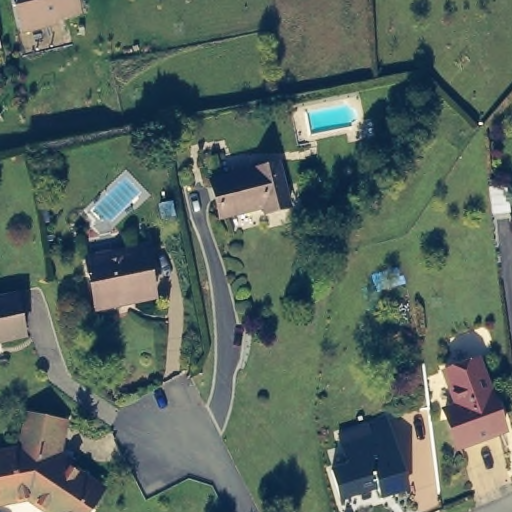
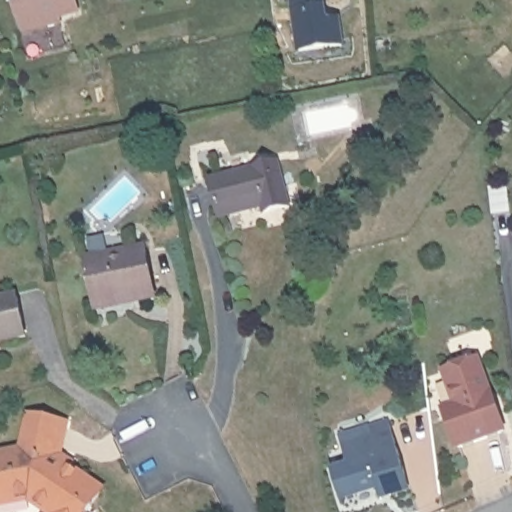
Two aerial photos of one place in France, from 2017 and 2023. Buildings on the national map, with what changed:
unchanged [(76,17),(56,22),(57,28),(22,37),(13,0),(72,0),(76,17)]
new [(326,17),(338,15),(342,39),(300,46),(293,0),(323,0),(326,17)]
unchanged [(281,159),(291,202),(267,207),(267,202),(220,213),(212,175),(281,159)]
unchanged [(143,245),(153,295),(132,299),(131,294),(94,302),(85,257),(143,245)]
unchanged [(25,334),(0,339),(0,298),(17,295),(25,334)]
unchanged [(481,359),(508,430),(464,446),(450,408),(461,404),(449,371),(481,359)]
unchanged [(71,415),(64,452),(110,485),(92,512),(62,512),(40,496),(9,502),(0,459),(0,450),(32,445),(40,409),(71,415)]
unchanged [(372,428),(370,422),(389,415),(410,482),(381,491),(379,484),(357,491),(342,439),(372,428)]

